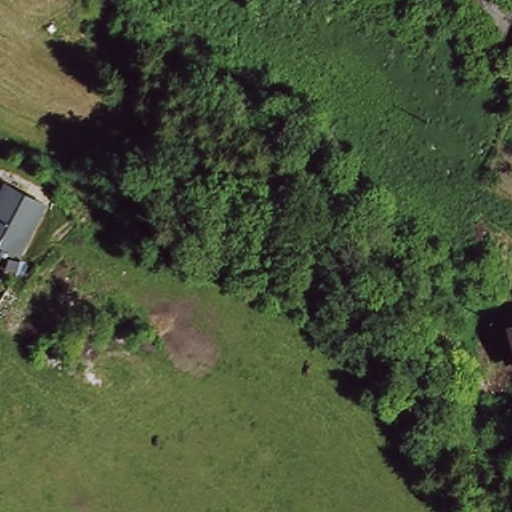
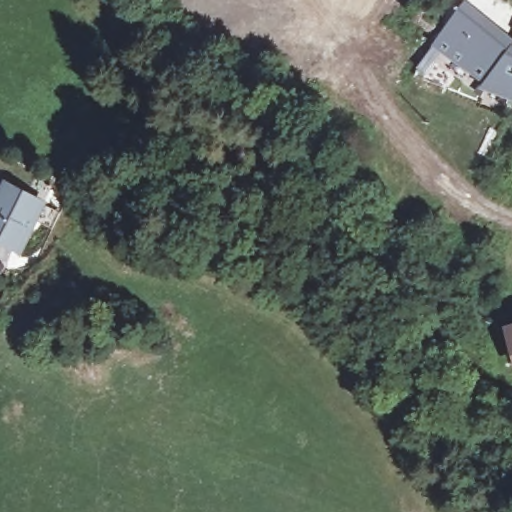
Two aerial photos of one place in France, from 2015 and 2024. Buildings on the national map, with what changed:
new [(512,44),(483,85),(436,43),(463,4),(512,44)]
new [(512,44),(512,96),(483,85),(512,44)]
unchanged [(43,206),(18,252),(0,243),(0,201),(7,187),(43,206)]
unchanged [(502,408),(512,405),(512,436),(502,408)]

